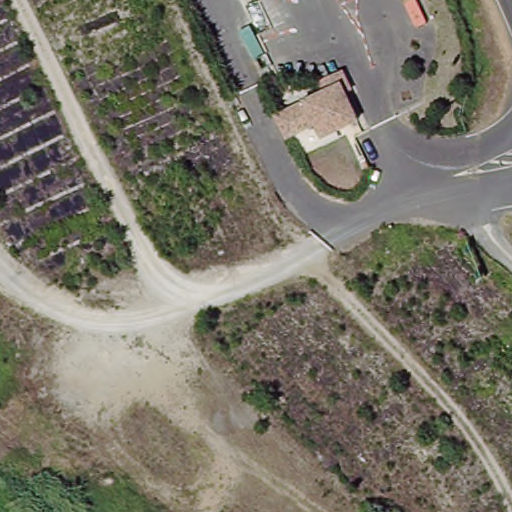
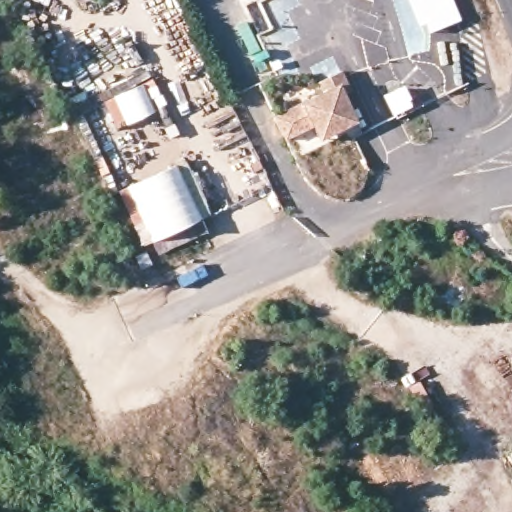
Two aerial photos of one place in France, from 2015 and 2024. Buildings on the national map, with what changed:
new [(430,32),(427,23),(419,26),(408,0),(453,0),(462,20),(430,32)]
unchanged [(312,127),(302,132),(283,142),(272,119),(285,112),(320,94),(315,84),(339,71),(345,83),(349,91),(342,95),(355,122),(330,135),(319,141),(312,127)]
new [(143,83),(155,111),(125,126),(123,123),(116,127),(103,101),(143,83)]
new [(385,98),(400,91),(410,110),(395,117),(385,98)]
new [(212,217),(191,226),(197,238),(160,255),(154,242),(144,246),(120,192),(187,162),(212,217)]

